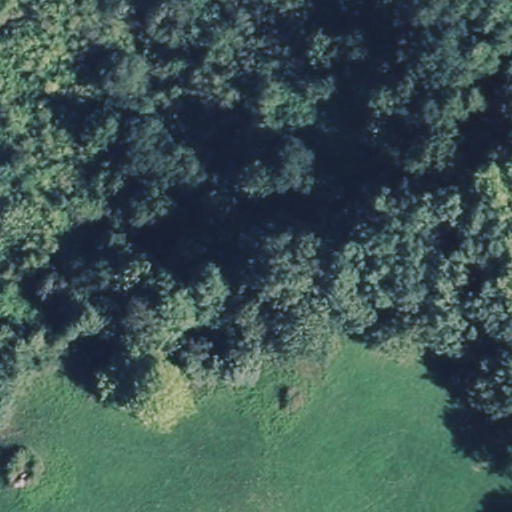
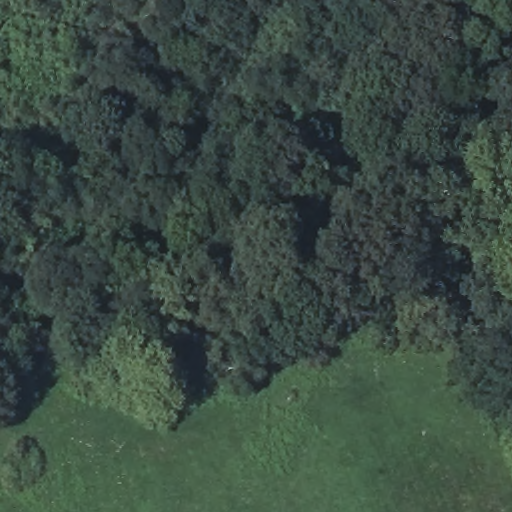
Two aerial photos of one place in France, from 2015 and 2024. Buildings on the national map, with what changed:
[]

